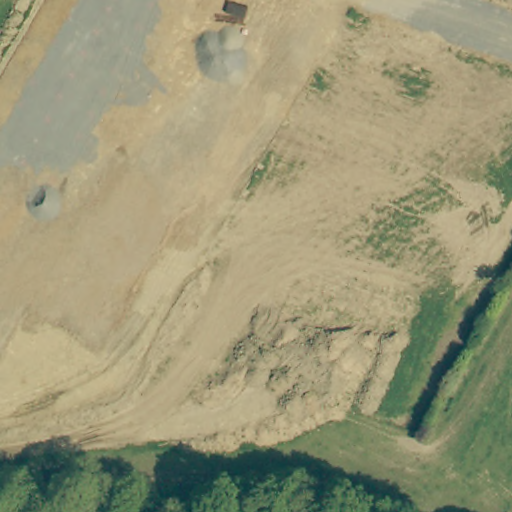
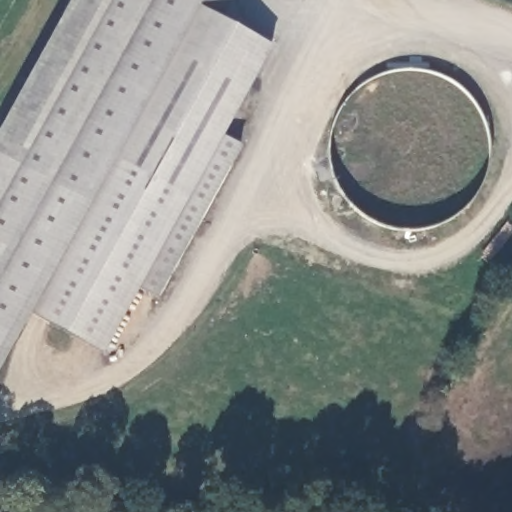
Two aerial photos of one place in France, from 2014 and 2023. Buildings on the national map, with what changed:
new [(223,18),(274,45),(225,134),(243,144),(159,297),(141,286),(105,353),(31,311),(0,368),(0,129),(71,0),(233,0),(223,18)]

